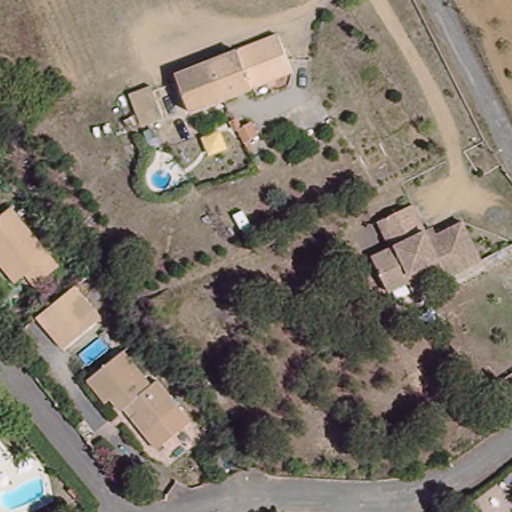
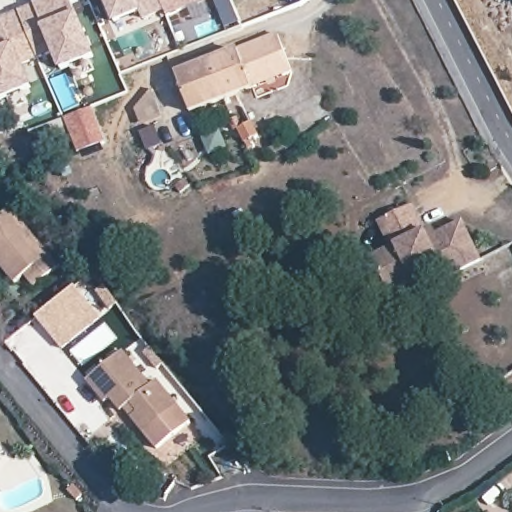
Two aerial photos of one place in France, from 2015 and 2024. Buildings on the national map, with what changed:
new [(5,30),(2,22),(36,9),(37,11),(50,5),(50,1),(52,0),(71,0),(94,57),(63,70),(55,52),(21,67),(30,90),(0,103),(0,33),(5,30)]
new [(164,10),(143,19),(140,11),(115,22),(106,0),(160,0),(164,10)]
new [(167,15),(164,10),(160,0),(203,0),(167,15)]
unchanged [(295,72),(182,119),(165,81),(279,34),(295,72)]
demolished [(160,99),(135,110),(127,97),(158,85),(160,99)]
new [(107,143),(78,154),(64,118),(92,107),(107,143)]
unchanged [(419,201),(436,234),(467,217),(488,260),(456,275),(451,266),(395,294),(376,255),(397,245),(384,219),(419,201)]
unchanged [(48,288),(40,277),(25,290),(0,260),(0,219),(13,209),(65,272),(48,288)]
unchanged [(103,316),(65,347),(40,316),(78,285),(103,316)]
unchanged [(118,396),(108,401),(101,406),(85,385),(128,351),(157,386),(159,383),(182,408),(150,434),(132,411),(118,396)]

